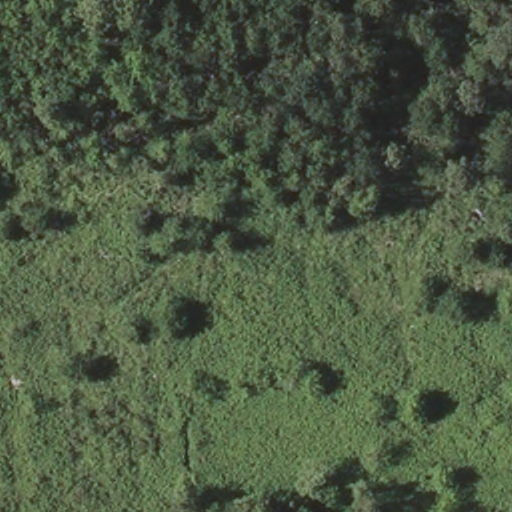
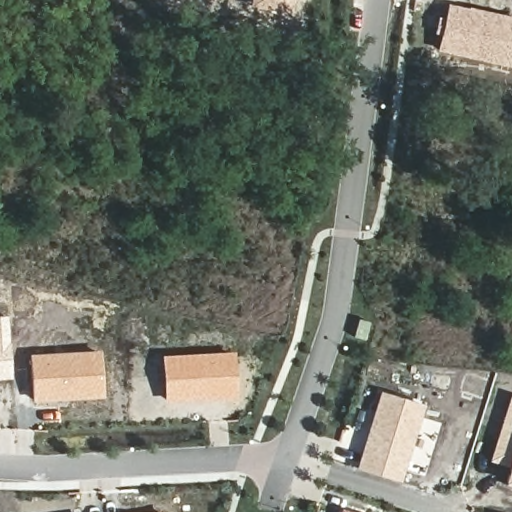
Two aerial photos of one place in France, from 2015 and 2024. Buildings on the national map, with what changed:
new [(249,7),(250,0),(293,0),(291,13),(249,7)]
new [(512,18),(512,68),(437,51),(448,4),(512,18)]
new [(9,318),(12,378),(0,379),(0,318),(9,318)]
new [(101,351),(103,397),(32,403),(29,355),(101,351)]
new [(235,351),(238,399),(164,403),(161,355),(235,351)]
new [(379,393),(424,405),(399,481),(357,468),(379,393)]
new [(512,488),(503,485),(509,466),(490,460),(509,396),(512,396),(512,488)]
new [(341,508),(353,512),(339,512),(341,508)]

